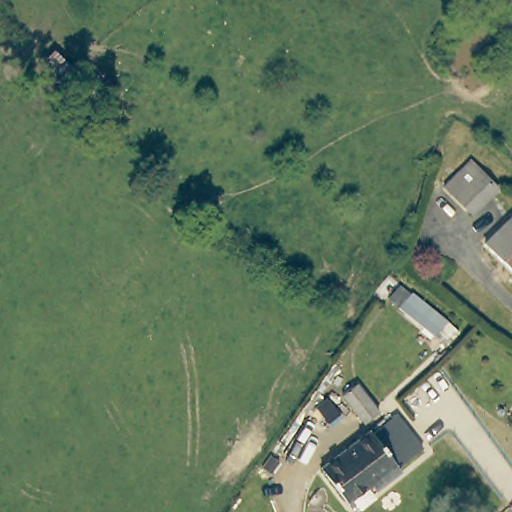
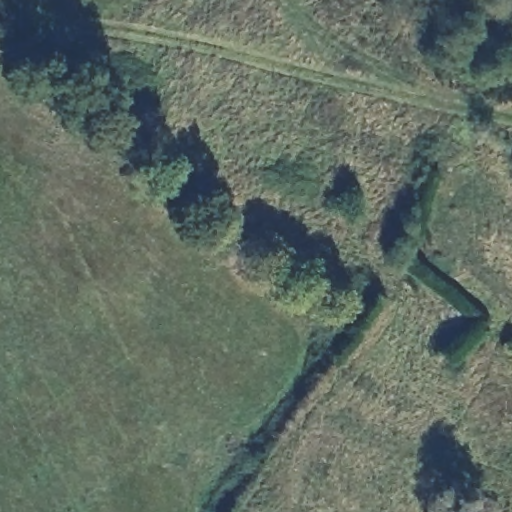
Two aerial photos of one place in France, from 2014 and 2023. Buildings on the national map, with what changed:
demolished [(497,189),(472,213),(455,194),(480,171),(497,189)]
demolished [(484,238),(512,212),(512,266),(484,238)]
demolished [(369,439),(388,426),(416,459),(390,480),(363,443),(369,439)]
demolished [(367,499),(364,494),(339,512),(314,479),(363,443),(390,480),(367,499)]

